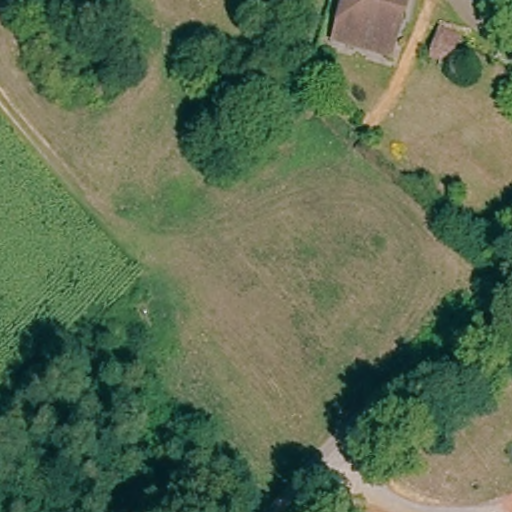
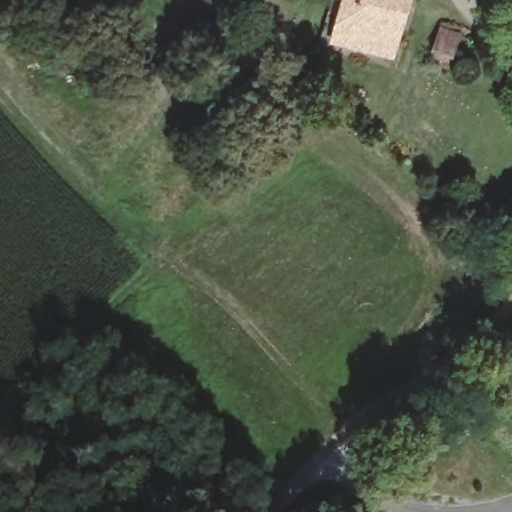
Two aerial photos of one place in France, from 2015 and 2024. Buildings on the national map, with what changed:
unchanged [(334,43),(346,0),(409,0),(400,36),(396,58),(374,53),(334,43)]
unchanged [(453,49),(449,69),(429,65),(433,45),(453,49)]

